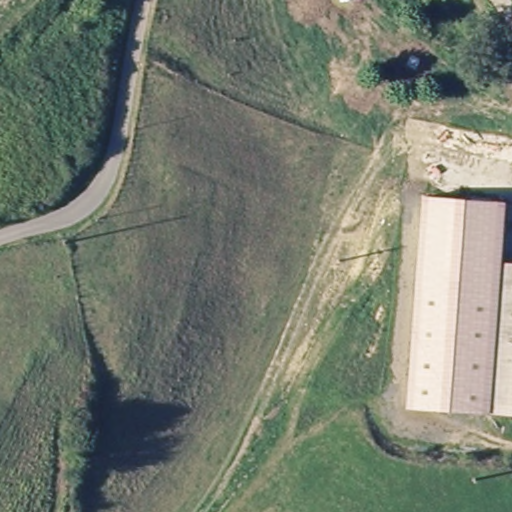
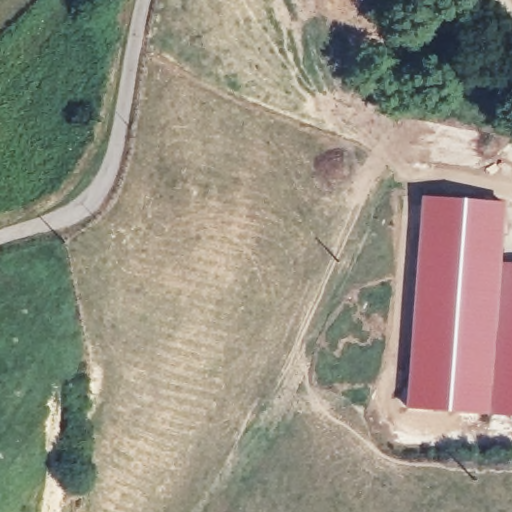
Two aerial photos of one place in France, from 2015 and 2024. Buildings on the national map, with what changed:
unchanged [(502,262),(490,409),(410,404),(416,328),(416,327),(427,195),(507,202),(502,256),(502,262)]
unchanged [(512,262),(512,412),(489,411),(490,409),(502,262),(512,262)]

